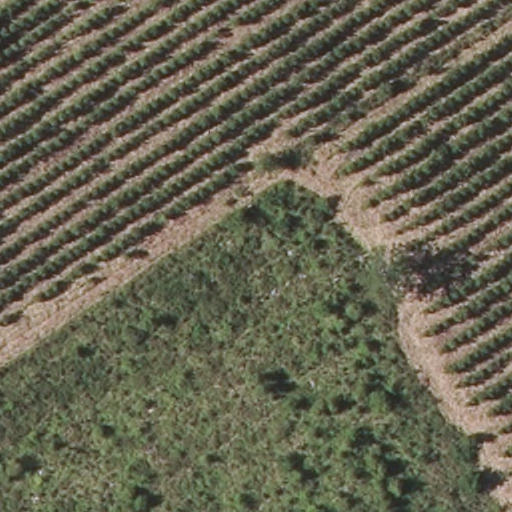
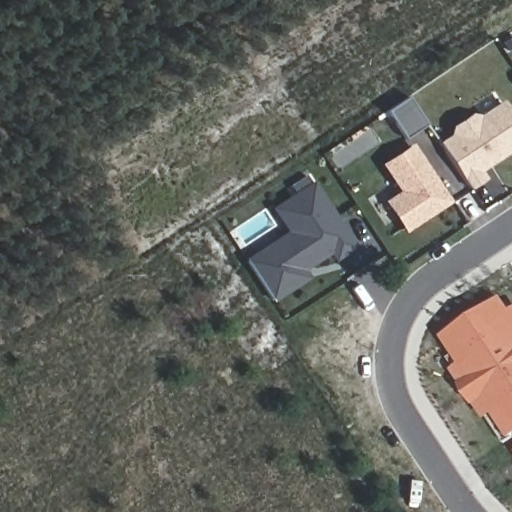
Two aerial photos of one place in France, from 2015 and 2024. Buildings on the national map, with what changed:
new [(406,96),(425,124),(403,138),(385,111),(406,96)]
new [(477,168),(482,176),(469,185),(441,143),(454,134),(456,125),(470,116),(479,118),(502,101),(512,116),(512,145),(511,145),(494,156),(489,160),(477,168)]
new [(411,144),(447,198),(405,225),(387,198),(402,189),(385,161),(411,144)]
new [(305,272),(270,295),(245,257),(290,228),(286,221),(306,208),(295,191),(311,180),(351,241),(335,253),(330,245),(306,260),(300,265),(305,272)]
new [(507,445),(479,403),(469,387),(450,360),(459,354),(477,381),(450,339),(504,303),(512,315),(512,441),(507,445)]

